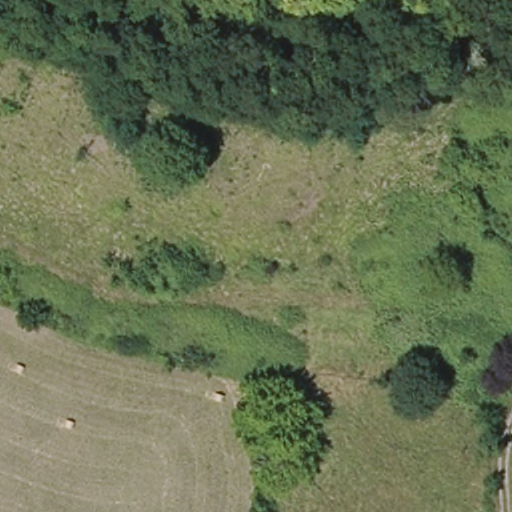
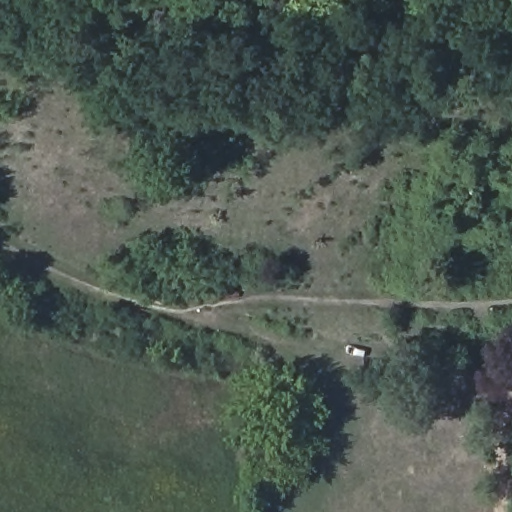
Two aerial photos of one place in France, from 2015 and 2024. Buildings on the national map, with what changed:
unchanged [(512,220),(512,250),(505,222),(512,220)]

